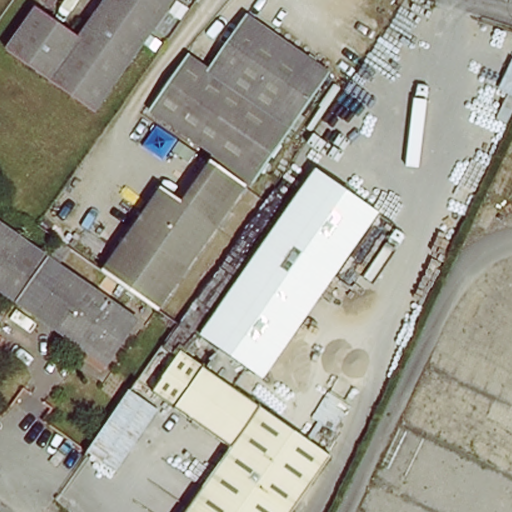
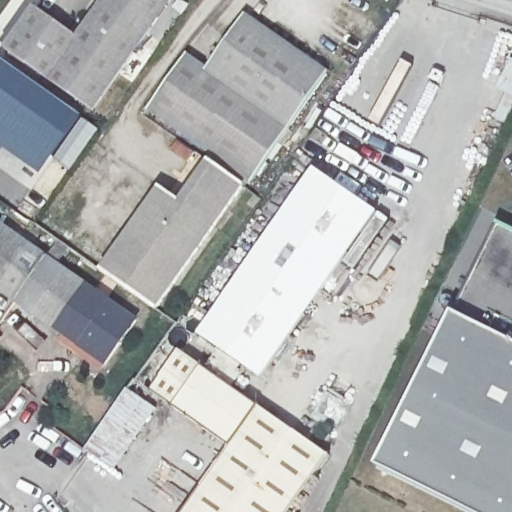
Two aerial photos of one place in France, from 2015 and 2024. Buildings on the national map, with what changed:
unchanged [(92,115),(5,57),(35,12),(75,37),(101,0),(171,0),(92,115)]
unchanged [(104,268),(161,185),(179,196),(207,155),(147,110),(189,50),(209,65),(243,9),(329,69),(159,310),(104,268)]
new [(2,60),(83,117),(43,176),(0,145),(0,63),(2,60)]
unchanged [(200,333),(315,168),(379,212),(263,375),(200,333)]
new [(455,316),(500,226),(512,232),(512,512),(468,512),(380,468),(455,316)]
unchanged [(39,258),(129,320),(97,363),(9,302),(0,296),(0,232),(39,258)]
demolished [(260,406),(301,341),(367,383),(321,450),(260,406)]
unchanged [(321,450),(330,456),(290,512),(180,512),(227,446),(154,394),(184,353),(260,406),(321,450)]
unchanged [(88,450),(129,391),(156,410),(115,470),(88,450)]

